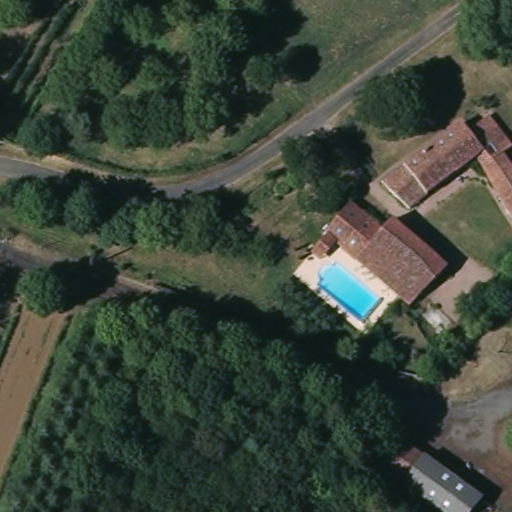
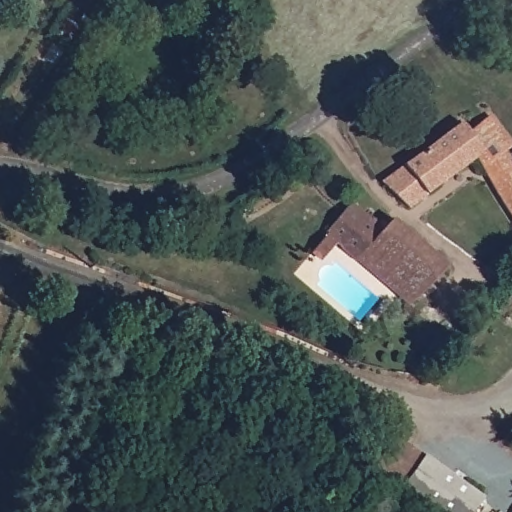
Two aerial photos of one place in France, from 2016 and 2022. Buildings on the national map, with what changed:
unchanged [(498,124),(512,144),(512,146),(505,152),(512,162),(512,204),(476,154),(410,204),(382,178),(460,120),(469,129),(490,113),(498,124)]
unchanged [(375,223),(386,231),(390,220),(446,268),(415,305),(337,239),(323,255),(315,247),(327,231),(353,203),(375,223)]
unchanged [(405,479),(377,457),(397,430),(426,452),(405,479)]
unchanged [(426,452),(485,495),(471,512),(449,512),(405,479),(426,452)]

